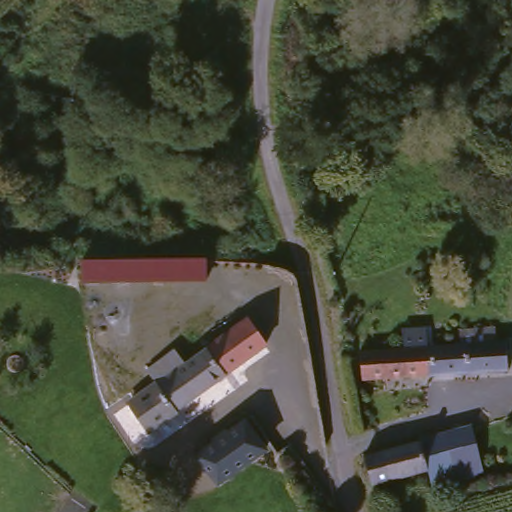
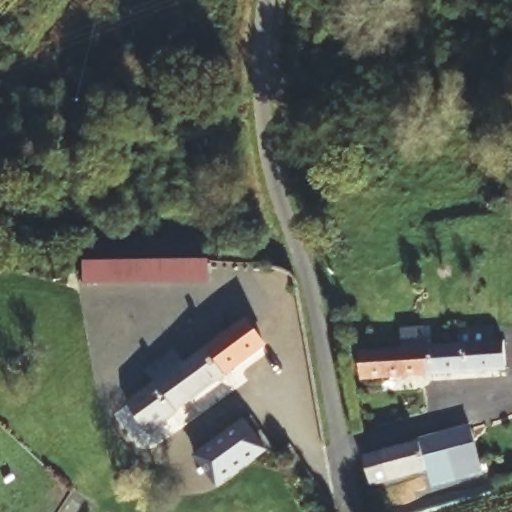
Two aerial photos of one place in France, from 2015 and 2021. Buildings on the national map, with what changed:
unchanged [(78,283),(78,260),(204,258),(205,283),(78,283)]
unchanged [(206,350),(243,321),(262,348),(224,376),(206,350)]
unchanged [(356,385),(353,357),(499,347),(501,376),(356,385)]
unchanged [(180,407),(146,432),(128,406),(156,383),(146,371),(173,350),(186,363),(206,350),(208,353),(224,376),(180,407)]
unchanged [(210,488),(189,460),(238,425),(258,453),(210,488)]
unchanged [(426,491),(422,476),(414,447),(464,435),(476,478),(426,491)]
unchanged [(366,492),(358,462),(414,447),(422,476),(366,492)]

